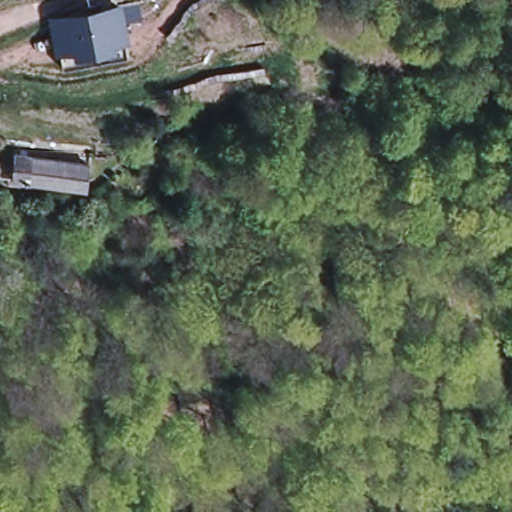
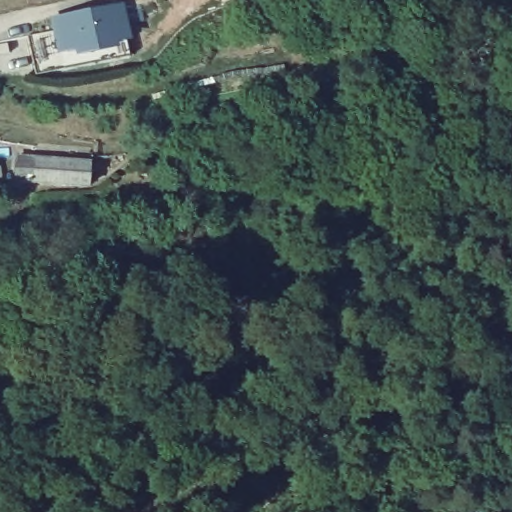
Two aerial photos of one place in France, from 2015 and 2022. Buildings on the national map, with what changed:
unchanged [(132,43),(60,59),(52,22),(123,7),(132,43)]
unchanged [(92,151),(88,190),(16,182),(20,143),(92,151)]

